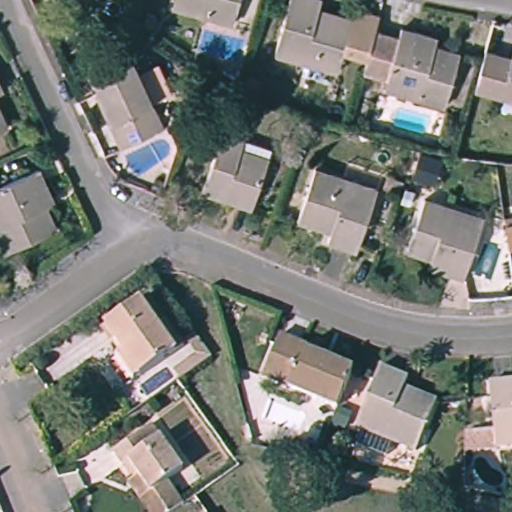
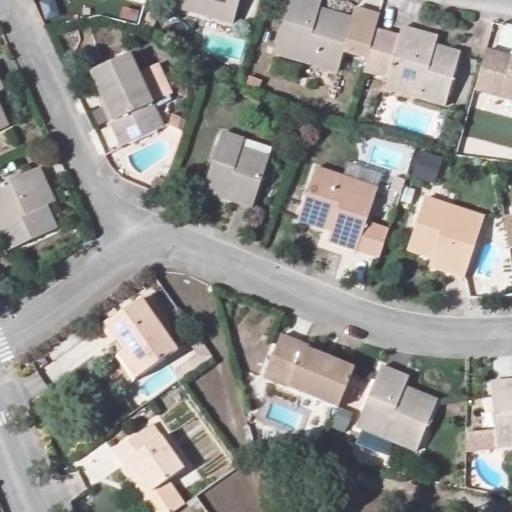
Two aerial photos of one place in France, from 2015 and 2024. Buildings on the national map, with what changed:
unchanged [(173,6),(174,0),(240,0),(233,25),(173,6)]
unchanged [(338,76),(275,59),(291,0),(306,0),(322,5),(320,15),(353,24),(355,16),(380,22),(376,34),(367,65),(343,59),(338,76)]
unchanged [(155,31),(146,29),(150,14),(159,16),(155,31)]
unchanged [(400,42),(403,32),(439,43),(437,51),(460,59),(446,109),(386,93),(388,81),(365,75),(367,65),(376,34),(400,42)]
unchanged [(512,59),(512,100),(475,89),(486,51),(512,59)]
unchanged [(124,151),(113,128),(116,126),(93,77),(131,60),(163,132),(124,151)]
unchanged [(0,73),(9,91),(0,95),(0,73)]
unchanged [(0,133),(0,99),(13,127),(0,133)]
unchanged [(204,191),(223,134),(245,140),(243,150),(269,159),(254,207),(204,191)]
unchanged [(422,152),(441,158),(433,182),(414,175),(422,152)]
unchanged [(57,229),(9,251),(0,233),(0,187),(41,169),(56,202),(47,206),(57,229)]
unchanged [(329,240),(332,230),(299,219),(316,169),(342,177),(379,190),(358,250),(329,240)]
unchanged [(430,265),(433,258),(409,250),(426,197),(484,218),(465,277),(430,265)]
unchanged [(512,221),(512,246),(510,246),(506,221),(512,221)]
unchanged [(97,330),(138,300),(174,349),(131,380),(115,356),(97,330)]
unchanged [(264,377),(281,337),(305,346),(303,350),(354,370),(339,408),(264,377)]
unchanged [(164,375),(186,360),(175,345),(185,338),(201,361),(170,383),(164,375)]
unchanged [(410,374),(406,383),(438,396),(418,447),(357,422),(381,362),(410,374)]
unchanged [(495,430),(491,385),(512,383),(512,446),(465,451),(466,432),(495,430)]
unchanged [(139,500),(147,495),(115,450),(151,424),(183,468),(165,480),(184,506),(175,512),(148,512),(139,500)]
unchanged [(295,442),(310,445),(307,457),(292,454),(295,442)]

